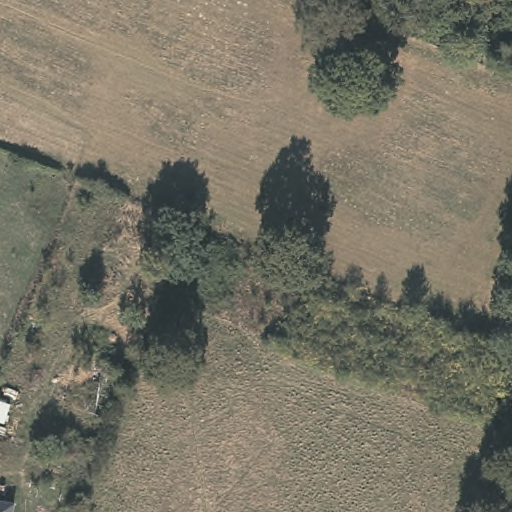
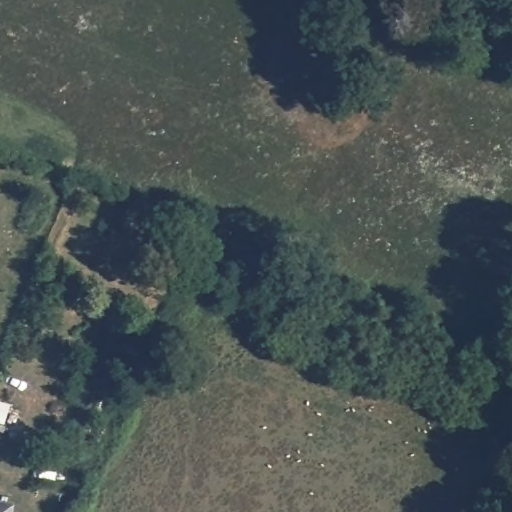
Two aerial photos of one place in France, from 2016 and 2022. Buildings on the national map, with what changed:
unchanged [(12,512),(0,512),(0,499),(13,500),(12,512)]

